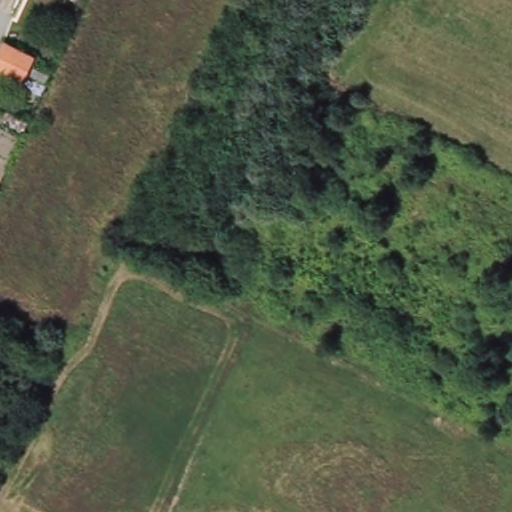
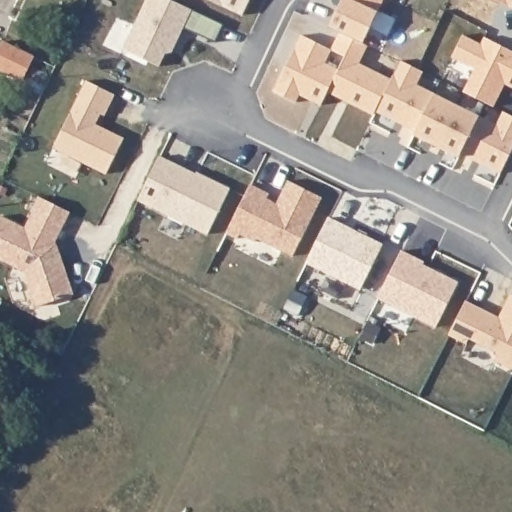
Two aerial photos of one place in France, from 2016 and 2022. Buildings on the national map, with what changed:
new [(224,25),(217,42),(184,28),(172,53),(165,55),(160,65),(125,49),(147,0),(171,0),(224,25)]
new [(243,16),(210,0),(250,0),(243,16)]
unchanged [(0,66),(0,53),(6,40),(39,55),(27,79),(0,66)]
new [(426,72),(419,85),(436,93),(480,115),(497,125),(504,111),(512,115),(512,152),(501,175),(459,156),(417,134),(376,112),(402,61),(426,72)]
new [(118,94),(106,117),(103,115),(98,124),(124,138),(108,175),(54,149),(85,81),(118,94)]
new [(197,174),(198,171),(230,188),(208,234),(138,202),(160,155),(197,174)]
new [(251,185),(269,194),(265,203),(275,208),(289,181),(323,197),(294,256),(258,238),(256,242),(241,234),(239,239),(227,233),(251,185)]
new [(55,243),(74,294),(38,308),(27,272),(0,259),(0,217),(1,214),(25,226),(39,198),(70,212),(55,243)]
new [(382,245),(361,290),(307,265),(330,217),(382,245)]
new [(427,261),(424,265),(459,283),(436,328),(378,299),(403,250),(427,261)]
new [(494,360),(496,351),(469,339),(467,344),(449,336),(467,300),(500,317),(511,294),(512,294),(512,367),(494,360)]

